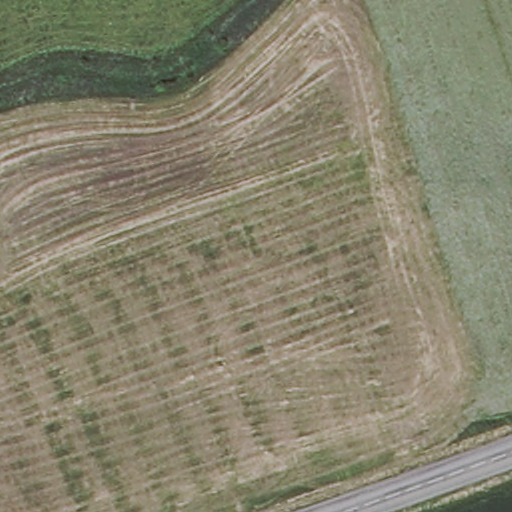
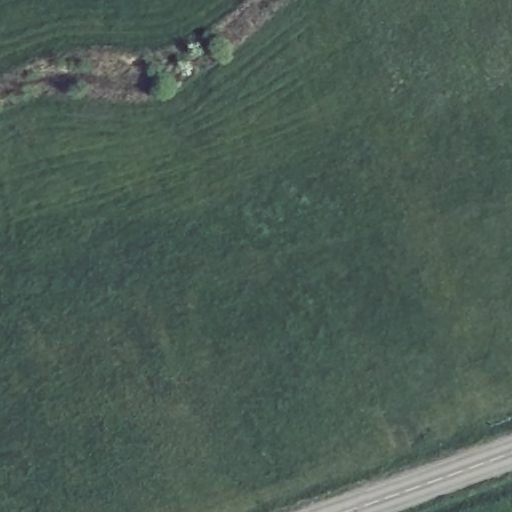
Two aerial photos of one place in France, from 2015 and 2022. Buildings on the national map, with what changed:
[]

